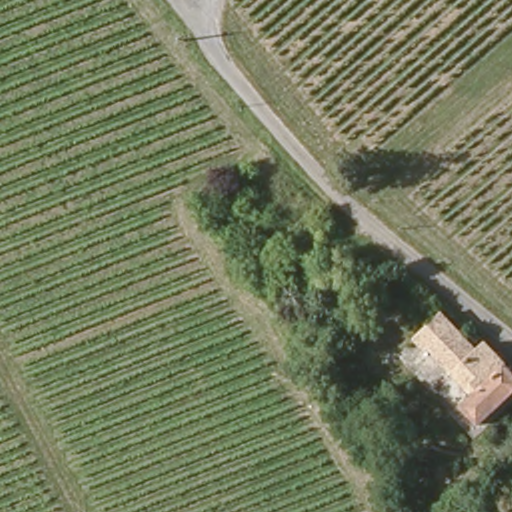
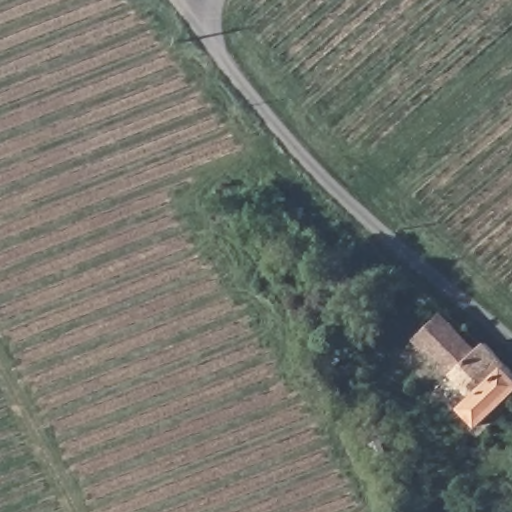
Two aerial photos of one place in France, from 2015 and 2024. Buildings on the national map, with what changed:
unchanged [(454,321),(480,353),(487,345),(512,367),(512,389),(476,424),(451,398),(466,383),(451,365),(437,376),(418,356),(426,346),(415,333),(438,311),(454,321)]

